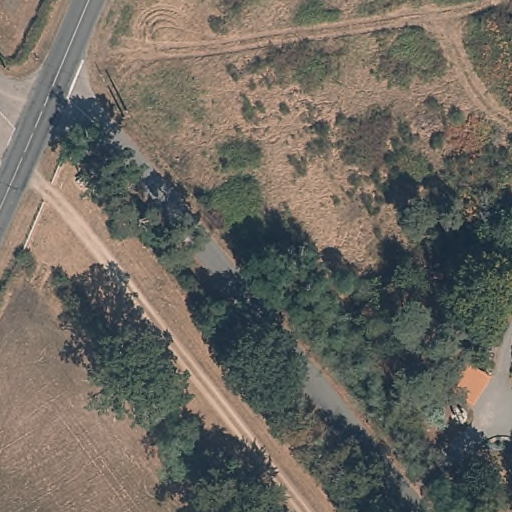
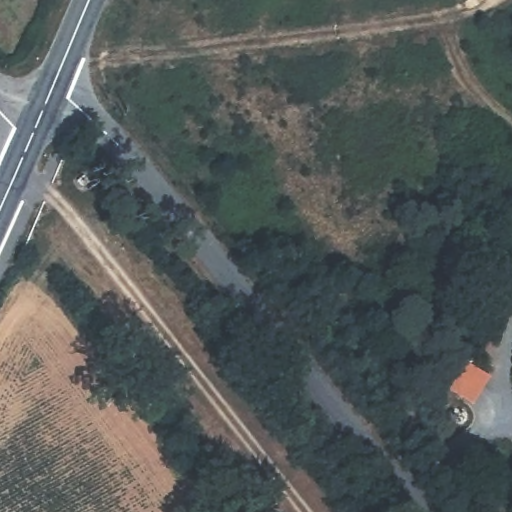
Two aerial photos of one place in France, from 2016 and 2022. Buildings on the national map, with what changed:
unchanged [(327,309),(318,296),(332,286),(341,299),(327,309)]

